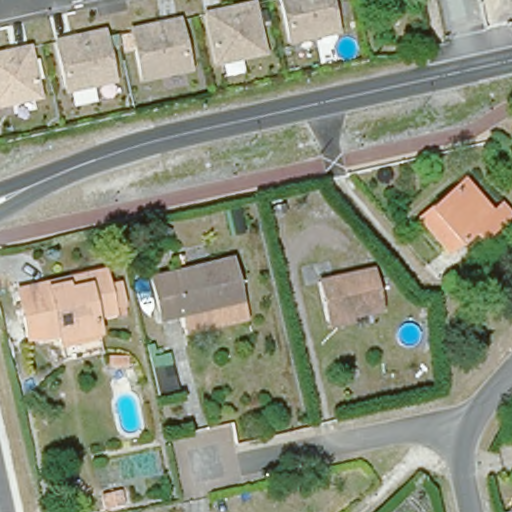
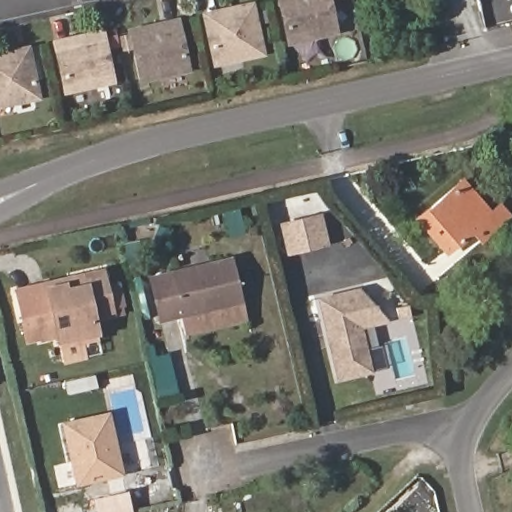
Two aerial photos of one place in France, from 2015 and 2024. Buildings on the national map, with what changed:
unchanged [(287,43),(276,0),(331,0),(339,33),(287,43)]
unchanged [(265,54),(210,64),(200,9),(254,1),(265,54)]
unchanged [(192,71),(139,81),(127,28),(180,18),(192,71)]
unchanged [(64,92),(51,39),(105,29),(116,81),(64,92)]
unchanged [(0,51),(29,45),(41,99),(0,106),(0,51)]
unchanged [(488,232),(479,220),(450,244),(424,213),(468,175),(494,207),(505,197),(512,205),(512,212),(488,232)]
new [(278,223),(322,212),(329,244),(285,255),(278,223)]
unchanged [(237,251),(249,315),(184,329),(183,309),(164,313),(150,272),(237,251)]
unchanged [(24,314),(14,282),(106,262),(113,305),(99,309),(105,345),(68,354),(62,334),(33,343),(24,314)]
demolished [(322,279),(374,267),(383,303),(329,314),(322,279)]
new [(318,297),(359,287),(388,320),(363,327),(368,348),(382,344),(387,367),(337,380),(318,297)]
new [(168,353),(177,393),(158,397),(149,358),(168,353)]
new [(75,487),(60,422),(110,411),(125,477),(75,487)]
new [(100,494),(119,490),(121,504),(103,508),(100,494)]

